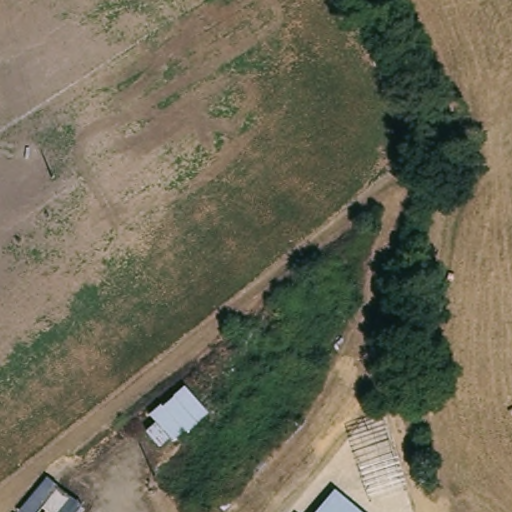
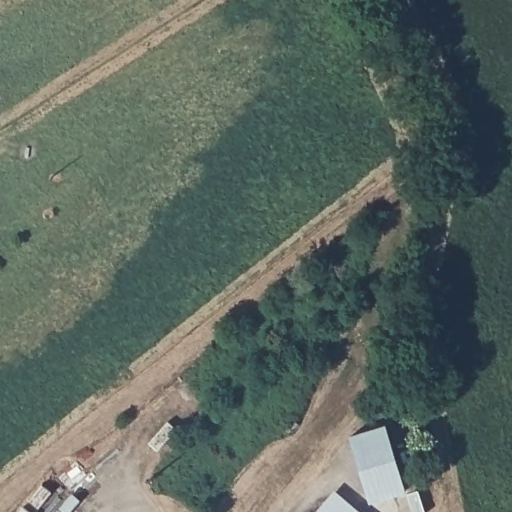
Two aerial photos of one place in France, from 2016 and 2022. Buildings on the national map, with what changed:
new [(409,491),(369,502),(350,435),(387,423),(409,491)]
unchanged [(356,512),(322,512),(335,495),(356,512)]

